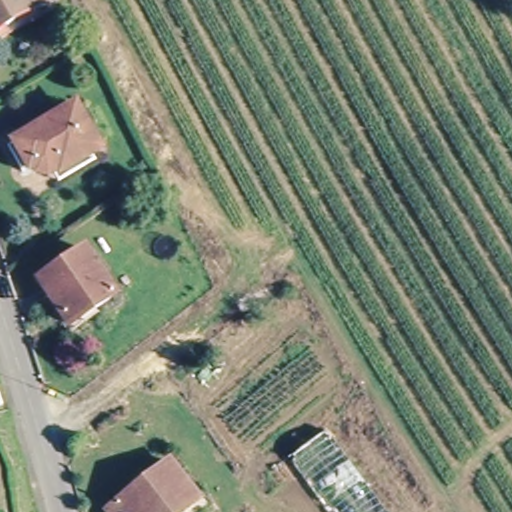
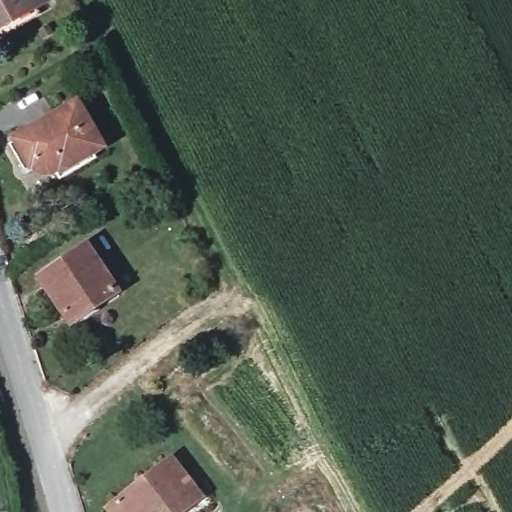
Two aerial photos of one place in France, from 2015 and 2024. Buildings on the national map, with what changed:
unchanged [(0,0),(46,0),(0,26),(0,0)]
unchanged [(53,162),(44,164),(37,161),(32,157),(22,162),(7,137),(76,97),(100,140),(92,144),(96,151),(57,172),(55,166),(53,162)]
unchanged [(40,276),(85,245),(115,290),(94,305),(70,321),(65,313),(40,276)]
unchanged [(0,400),(0,390),(2,399),(0,400)]
demolished [(331,428),(392,512),(330,512),(290,457),(331,428)]
unchanged [(176,512),(112,512),(107,506),(171,458),(200,494),(176,512)]

